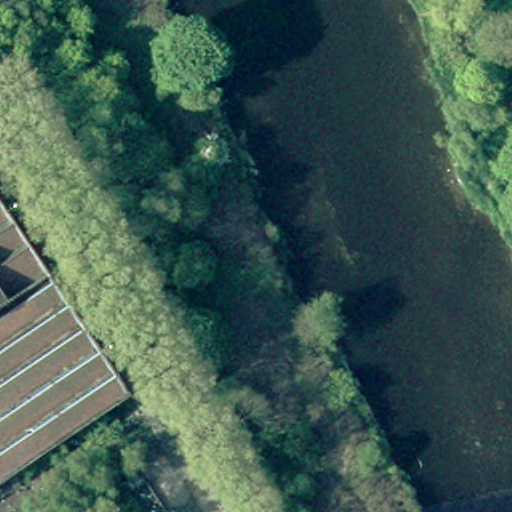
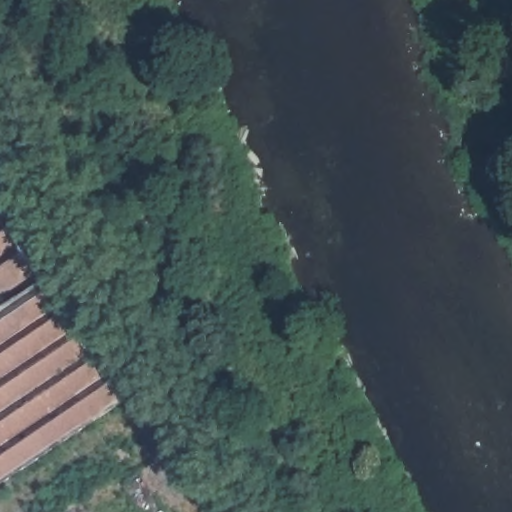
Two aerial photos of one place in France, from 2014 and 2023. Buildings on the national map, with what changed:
unchanged [(0,477),(0,227),(115,398),(0,477)]

